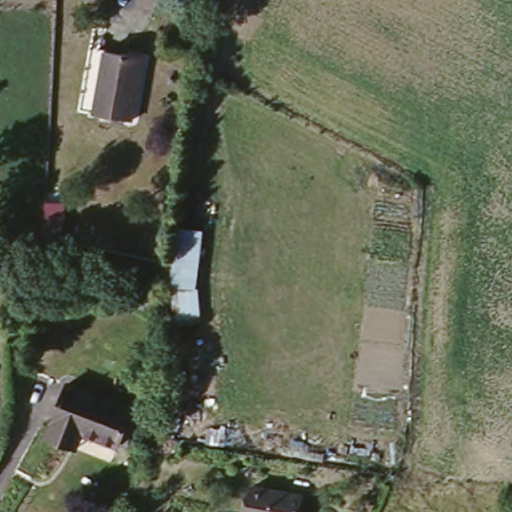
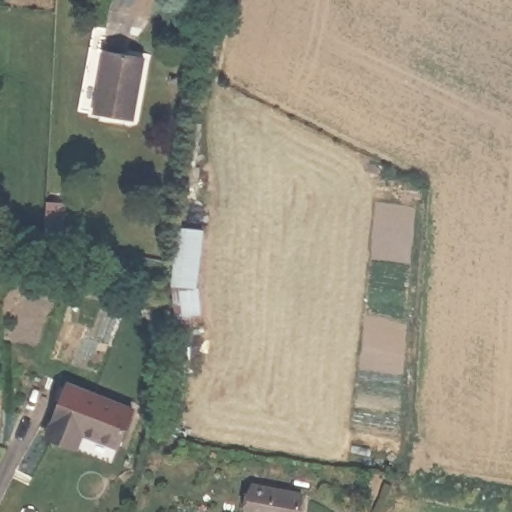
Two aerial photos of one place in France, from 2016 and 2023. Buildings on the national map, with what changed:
unchanged [(146,55),(133,125),(89,118),(102,46),(146,55)]
unchanged [(200,280),(202,323),(175,327),(172,288),(173,225),(205,229),(200,280)]
unchanged [(135,414),(122,453),(80,437),(75,454),(52,445),(71,390),(135,414)]
unchanged [(301,492),(296,512),(245,512),(251,480),(301,492)]

